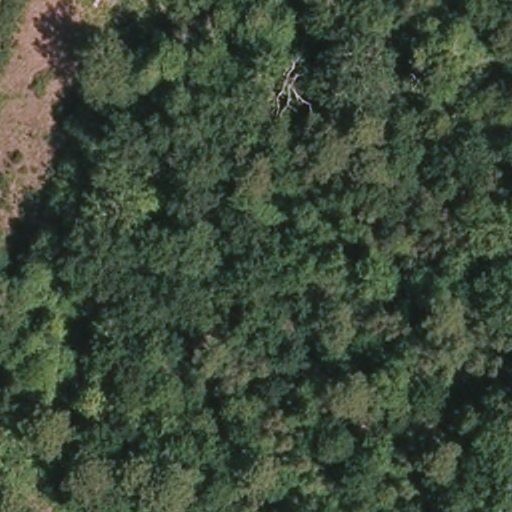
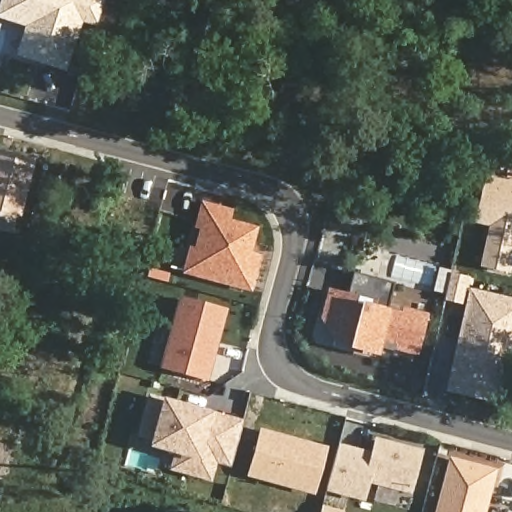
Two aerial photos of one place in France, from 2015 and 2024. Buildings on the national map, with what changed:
new [(96,27),(82,24),(65,72),(14,56),(24,27),(0,20),(0,0),(104,0),(96,27)]
new [(20,218),(0,213),(0,149),(35,159),(20,218)]
new [(495,223),(479,221),(487,178),(512,183),(512,254),(508,270),(487,266),(495,223)]
new [(181,274),(201,201),(233,209),(229,219),(258,227),(251,253),(262,256),(251,292),(181,274)]
new [(389,305),(427,314),(417,357),(381,347),(378,357),(349,348),(350,343),(332,340),(320,319),(328,288),(350,293),(354,273),(395,282),(389,305)]
new [(445,392),(465,305),(445,301),(451,273),(471,277),(469,288),(512,298),(512,364),(502,404),(445,392)]
new [(160,369),(179,296),(228,309),(209,381),(160,369)]
new [(230,468),(216,465),(211,482),(168,471),(176,456),(149,448),(151,440),(136,437),(148,395),(162,398),(214,412),(243,420),(230,468)]
new [(314,496),(246,477),(259,428),(327,447),(314,496)]
new [(411,495),(369,484),(365,502),(325,492),(338,443),(369,451),(374,437),(423,450),(411,495)]
new [(434,512),(448,456),(497,470),(487,512),(434,512)]

